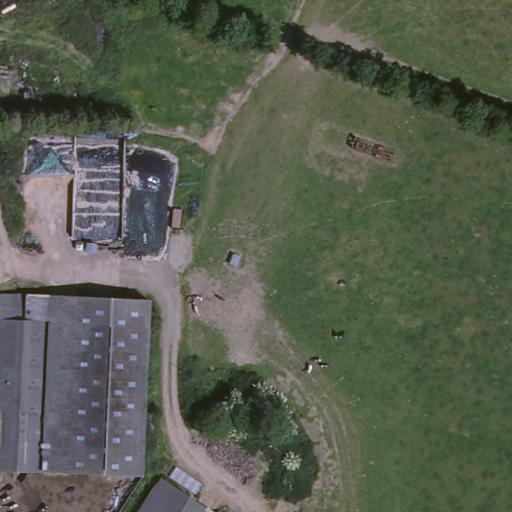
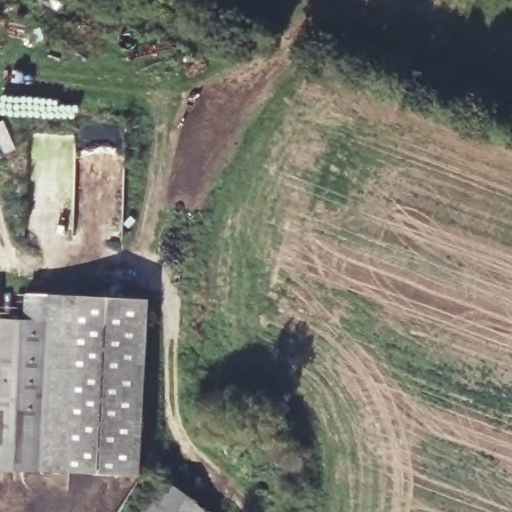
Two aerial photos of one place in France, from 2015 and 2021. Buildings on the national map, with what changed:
unchanged [(2,356),(0,356),(0,295),(5,295),(2,356)]
unchanged [(145,479),(74,475),(0,470),(0,389),(2,356),(5,295),(155,304),(145,479)]
unchanged [(165,485),(206,512),(146,512),(165,485)]

